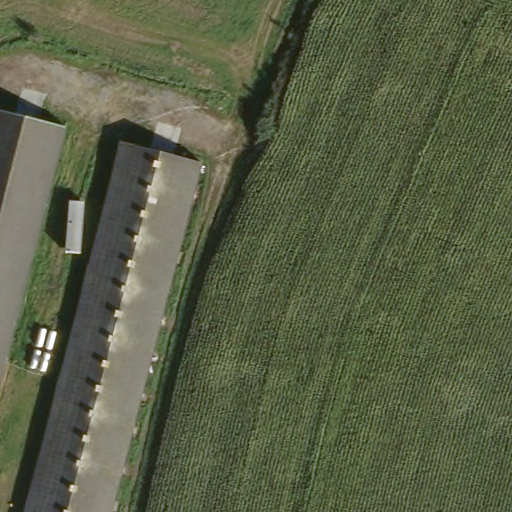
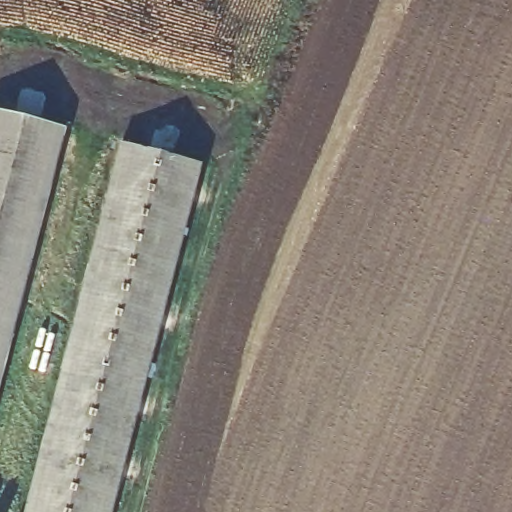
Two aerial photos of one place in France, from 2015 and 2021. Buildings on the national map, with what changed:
unchanged [(57,135),(0,353),(0,120),(57,135)]
unchanged [(185,252),(184,254),(171,297),(153,358),(153,362),(107,512),(17,512),(62,362),(63,360),(63,359),(125,150),(208,173),(185,252)]

